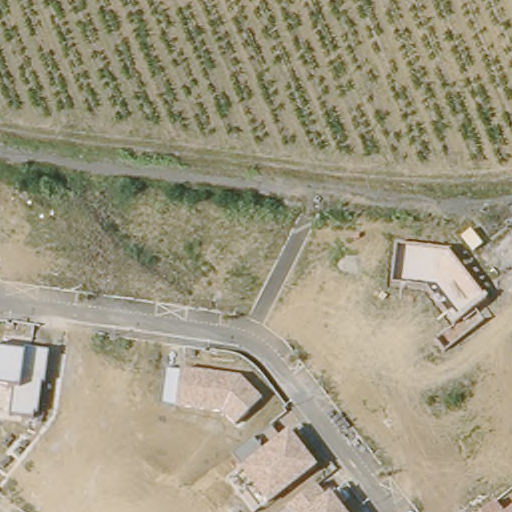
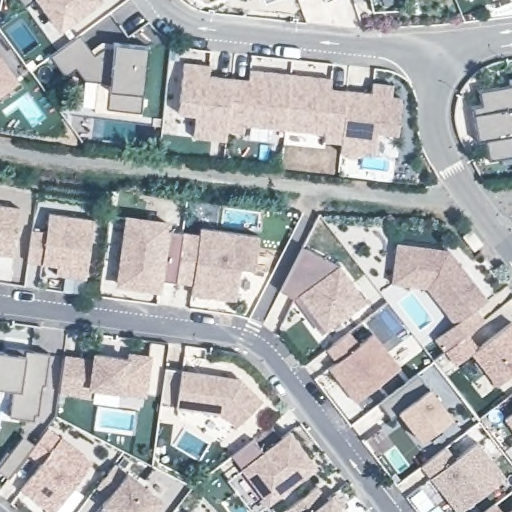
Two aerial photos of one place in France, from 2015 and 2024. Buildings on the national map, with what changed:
new [(37,0),(26,6),(21,0),(102,0),(60,32),(37,0)]
new [(263,1),(263,0),(265,0),(263,1)]
new [(83,78),(75,67),(64,75),(48,54),(79,32),(90,47),(100,39),(113,41),(147,45),(140,111),(140,115),(92,109),(96,80),(83,78)]
new [(17,78),(0,91),(0,55),(17,78)]
new [(183,61),(208,64),(207,74),(231,76),(225,129),(225,139),(192,135),(175,133),(177,111),(183,61)]
new [(282,142),(242,138),(242,130),(225,129),(231,76),(248,78),(249,68),(290,73),(330,77),(330,87),(346,89),(340,141),(323,139),(322,147),(282,142)]
new [(509,84),(508,76),(512,76),(512,154),(488,158),(485,138),(477,139),(472,105),(481,103),(479,89),(509,84)]
unchanged [(374,155),(339,151),(340,141),(346,89),(370,91),(372,81),(392,84),(390,95),(400,96),(396,132),(394,157),(374,155)]
new [(17,206),(11,254),(0,253),(0,204),(17,206)]
new [(30,228),(44,230),(46,211),(91,217),(83,276),(54,273),(55,264),(25,260),(30,228)]
new [(174,278),(158,276),(156,286),(116,280),(125,214),(165,219),(164,226),(181,228),(174,278)]
new [(181,228),(198,230),(199,223),(258,231),(253,264),(239,263),(235,295),(190,290),(191,280),(174,278),(181,228)]
unchanged [(455,325),(425,287),(393,283),(397,245),(449,251),(486,298),(455,325)]
new [(301,247),(338,266),(366,301),(326,331),(299,296),(294,299),(280,291),(301,247)]
new [(468,335),(479,350),(512,323),(512,376),(497,388),(470,355),(455,367),(435,339),(455,325),(476,306),(486,324),(468,335)]
new [(347,332),(357,345),(372,334),(398,368),(355,402),(328,368),(335,362),(325,349),(347,332)]
unchanged [(46,384),(41,384),(36,420),(12,416),(15,390),(0,388),(0,352),(25,355),(25,351),(50,354),(46,384)]
unchanged [(80,358),(92,360),(92,354),(125,358),(126,353),(148,356),(143,394),(90,387),(88,395),(58,391),(62,356),(80,358)]
unchanged [(236,426),(221,414),(162,406),(167,369),(243,379),(262,400),(236,426)]
new [(417,372),(452,415),(421,440),(399,411),(393,415),(391,417),(380,402),(417,372)]
new [(512,413),(512,426),(505,417),(512,413)]
new [(8,479),(0,473),(0,465),(22,436),(35,445),(46,429),(91,463),(54,512),(51,512),(21,489),(41,463),(28,453),(8,479)]
unchanged [(317,467),(266,504),(232,456),(253,440),(262,451),(290,431),(317,467)]
new [(454,459),(476,442),(504,477),(459,512),(457,512),(421,466),(445,447),(454,459)]
new [(161,499),(152,512),(110,512),(101,505),(108,496),(96,487),(114,463),(161,499)]
unchanged [(292,512),(289,509),(316,485),(328,496),(341,512),(292,512)]
unchanged [(503,512),(485,512),(496,503),(503,512)]
unchanged [(512,512),(507,512),(512,508),(512,512)]

